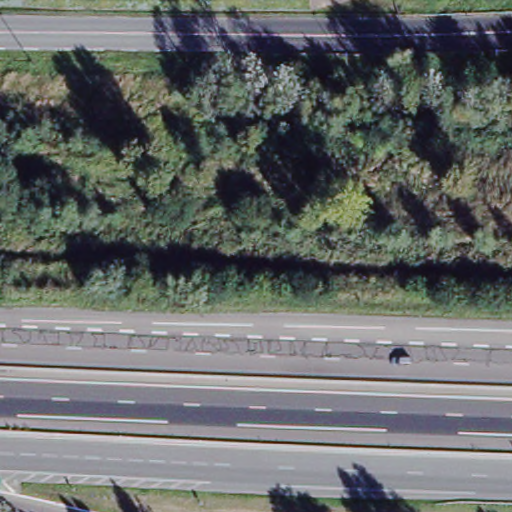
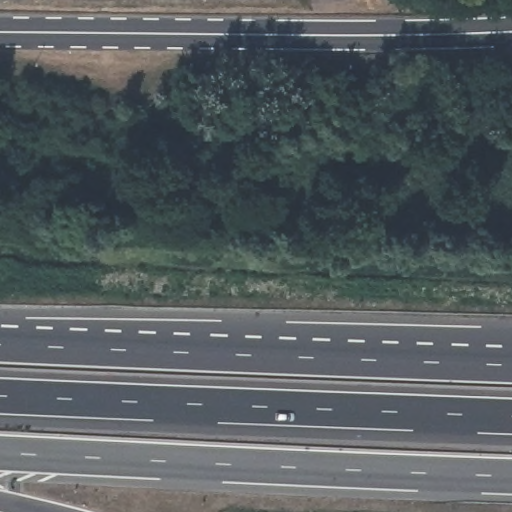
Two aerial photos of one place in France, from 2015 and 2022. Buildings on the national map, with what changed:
[]

